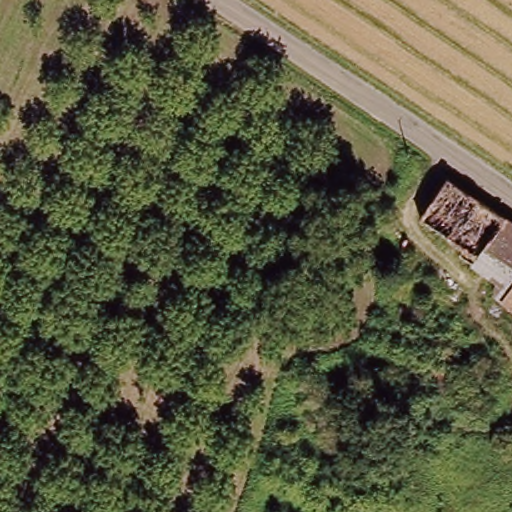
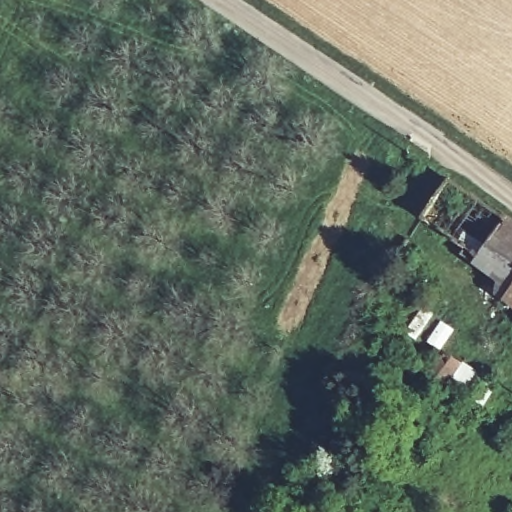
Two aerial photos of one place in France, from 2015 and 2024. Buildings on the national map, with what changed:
unchanged [(500,302),(494,296),(502,286),(470,268),(475,257),(418,217),(443,179),(503,218),(512,224),(512,313),(500,302)]
unchanged [(440,391),(415,376),(434,350),(456,365),(440,391)]

